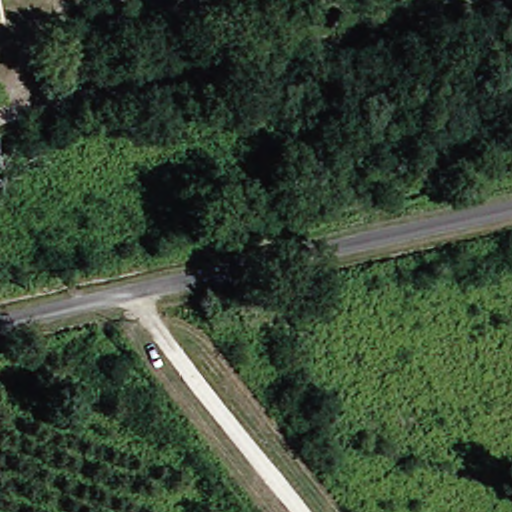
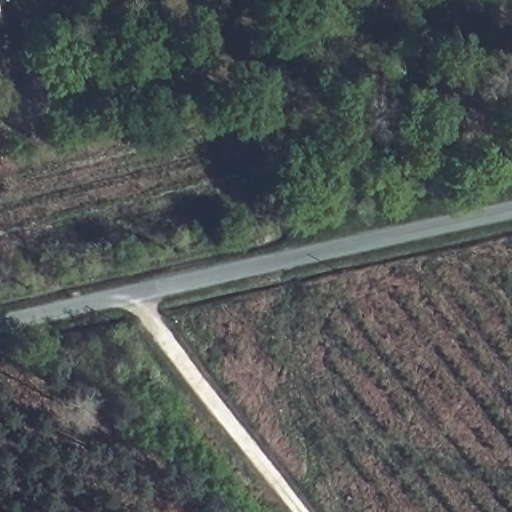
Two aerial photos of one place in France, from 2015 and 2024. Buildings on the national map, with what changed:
unchanged [(1,21),(0,21),(0,16),(1,21)]

